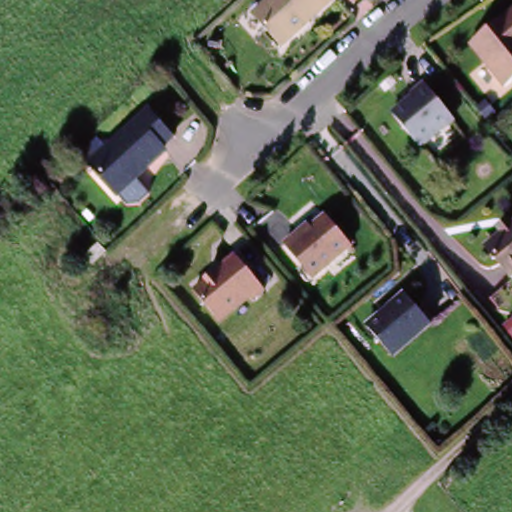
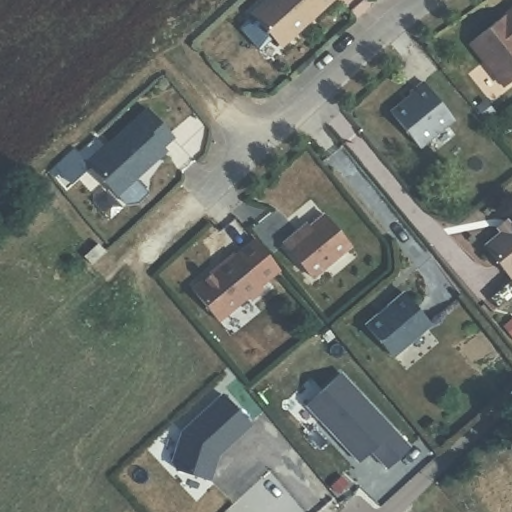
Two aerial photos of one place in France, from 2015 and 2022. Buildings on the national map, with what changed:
unchanged [(266,0),(330,0),(278,47),(249,15),(266,0)]
unchanged [(461,43),(512,3),(512,73),(496,86),(461,43)]
unchanged [(410,100),(408,98),(421,88),(451,125),(417,152),(388,117),(410,100)]
unchanged [(83,164),(75,156),(91,141),(99,149),(141,109),(167,136),(156,146),(158,148),(142,163),(141,167),(130,179),(144,193),(134,203),(122,205),(113,195),(83,164)]
unchanged [(282,248),(295,236),(298,239),(322,219),(348,249),(310,281),(282,248)]
unchanged [(482,246),(500,232),(496,227),(504,221),(508,226),(512,222),(512,273),(506,277),(482,246)]
unchanged [(94,263),(87,254),(101,242),(108,251),(94,263)]
unchanged [(186,294),(205,279),(203,277),(214,268),(227,258),(257,294),(244,305),(241,301),(211,325),(186,294)]
unchanged [(359,330),(397,297),(423,327),(385,360),(359,330)]
unchanged [(201,314),(209,323),(202,329),(194,320),(201,314)]
new [(346,370),(411,448),(388,467),(373,449),(360,459),(311,400),(346,370)]
new [(183,431),(214,406),(215,407),(226,397),(251,426),(239,435),(240,437),(214,459),(216,462),(208,479),(176,464),(169,459),(183,431)]

